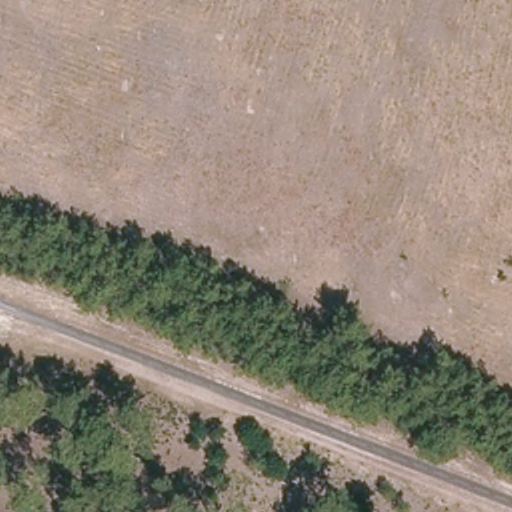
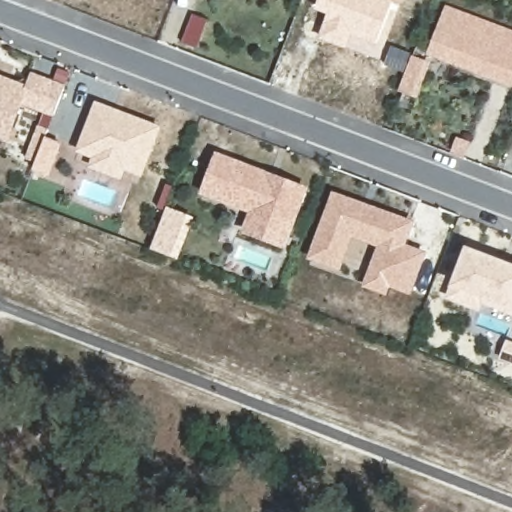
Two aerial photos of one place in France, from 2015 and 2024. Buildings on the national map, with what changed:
new [(327,14),(314,8),(317,0),(393,0),(377,44),(351,34),(346,48),(318,38),(327,14)]
new [(450,9),(470,17),(458,46),(478,54),(473,67),(432,52),(450,9)]
new [(512,33),(512,82),(473,67),(478,54),(458,46),(470,17),(512,33)]
new [(10,81),(28,88),(33,72),(66,84),(56,113),(25,101),(10,136),(7,141),(0,139),(0,78),(10,81)]
new [(163,126),(146,177),(129,170),(127,179),(91,166),(94,158),(79,152),(97,103),(163,126)]
new [(272,175),(268,184),(290,192),(292,184),(307,189),(286,246),(259,236),(269,210),(258,206),(256,212),(220,198),(205,192),(207,186),(219,155),(272,175)]
new [(360,202),(377,208),(413,222),(404,245),(426,253),(411,290),(390,282),(387,290),(368,283),(383,243),(354,232),(341,265),(313,255),(337,193),(360,202)]
new [(177,257),(171,254),(155,248),(169,209),(186,216),(192,218),(177,257)]
new [(457,287),(472,248),(512,264),(512,300),(487,290),(488,286),(484,298),(457,287)]
new [(512,346),(512,358),(507,356),(512,346)]

